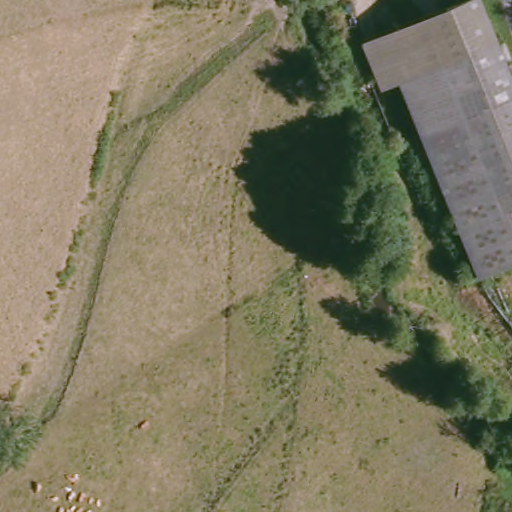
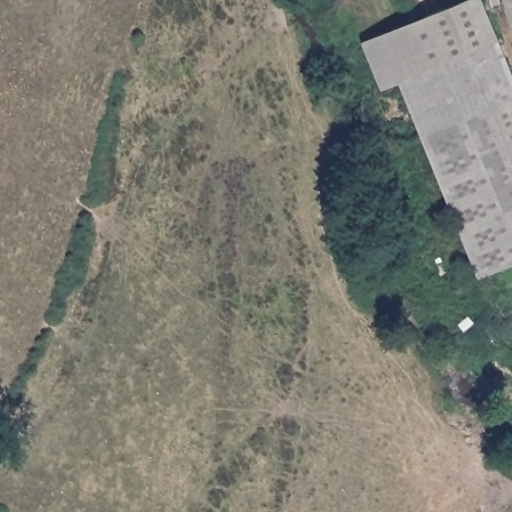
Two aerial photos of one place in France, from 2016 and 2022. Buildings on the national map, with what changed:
unchanged [(388,37),(483,0),(501,46),(406,83),(388,37)]
unchanged [(501,46),(512,74),(512,266),(483,278),(406,83),(501,46)]

